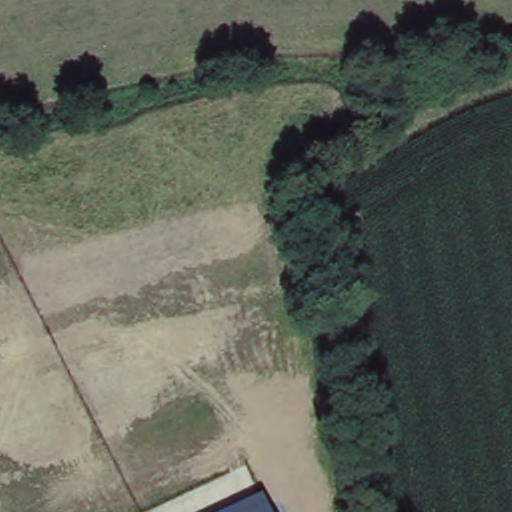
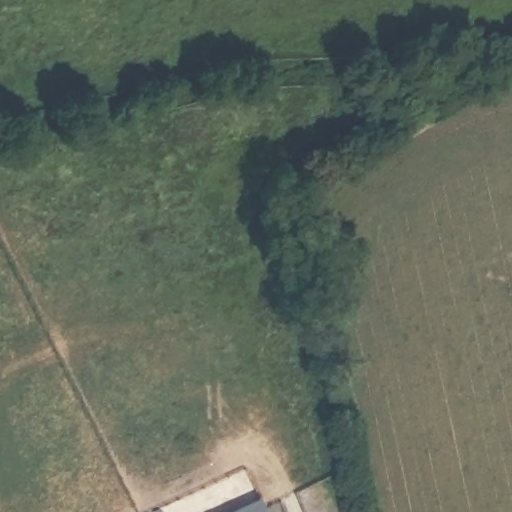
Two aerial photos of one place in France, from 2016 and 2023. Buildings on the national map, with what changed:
unchanged [(268,512),(229,512),(260,496),(268,512)]

